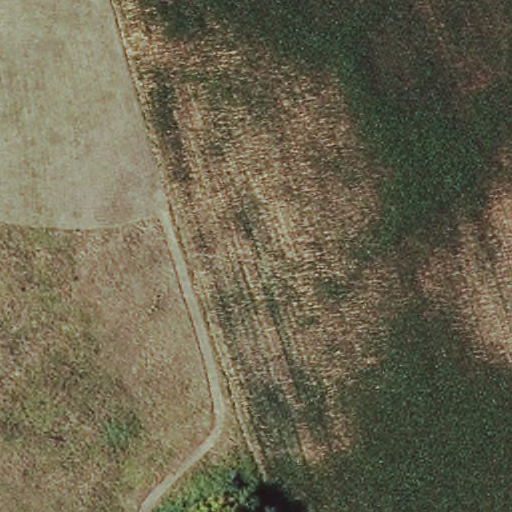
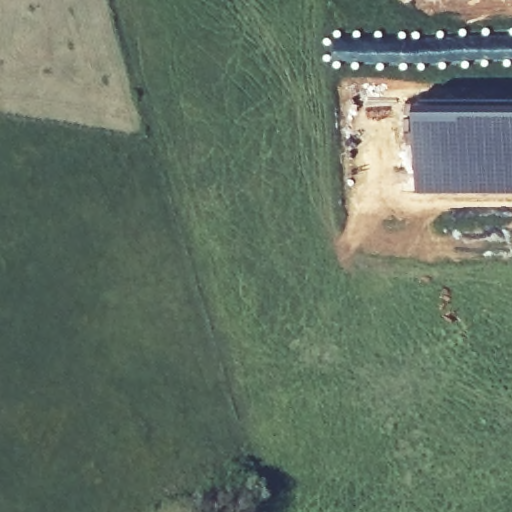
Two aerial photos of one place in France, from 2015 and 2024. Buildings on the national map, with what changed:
new [(420,102),(501,104),(512,104),(512,190),(420,189),(418,157),(420,102)]

